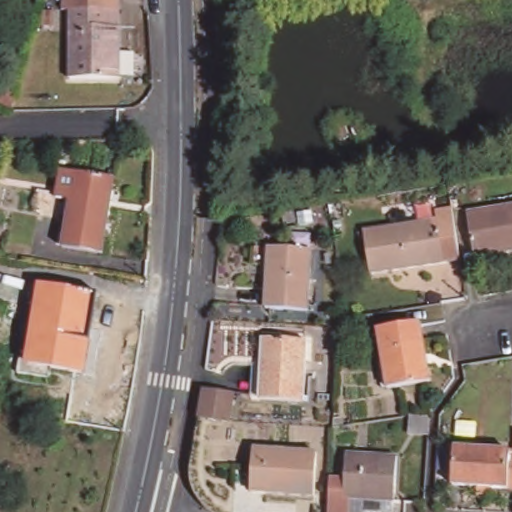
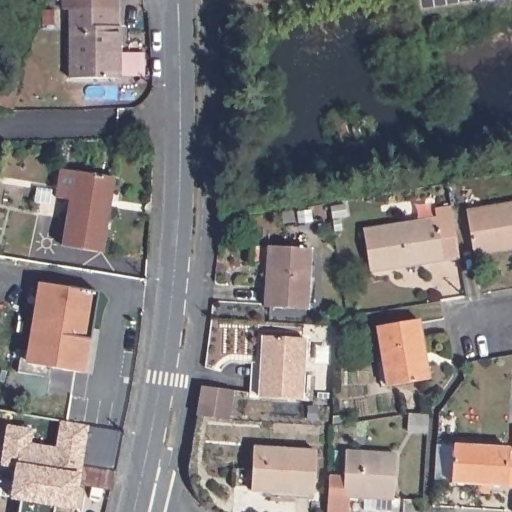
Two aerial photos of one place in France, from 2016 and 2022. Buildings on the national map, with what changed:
unchanged [(66,10),(66,0),(122,0),(124,80),(75,80),(74,10),(66,10)]
unchanged [(56,202),(59,171),(113,176),(106,255),(66,250),(70,203),(56,202)]
unchanged [(512,202),(512,249),(476,255),(470,210),(512,202)]
unchanged [(430,219),(428,209),(447,206),(455,257),(380,271),(373,229),(430,219)]
unchanged [(317,253),(312,312),(267,310),(271,251),(317,253)]
unchanged [(34,357),(45,281),(95,288),(81,380),(54,375),(31,371),(34,357)]
unchanged [(420,322),(430,378),(387,387),(376,330),(420,322)]
unchanged [(307,338),(303,395),(258,393),(262,337),(307,338)]
unchanged [(232,391),(230,422),(199,421),(204,390),(232,391)]
new [(55,447),(59,421),(122,431),(115,471),(82,466),(81,473),(75,511),(53,507),(53,512),(20,512),(21,502),(9,501),(13,470),(0,467),(0,457),(5,424),(32,430),(30,444),(55,447)]
unchanged [(402,423),(401,436),(381,436),(382,422),(402,423)]
unchanged [(512,447),(512,486),(456,483),(458,445),(512,447)]
unchanged [(320,450),(317,493),(254,491),(256,447),(320,450)]
unchanged [(350,447),(395,447),(390,507),(362,506),(363,494),(355,493),(354,512),(332,512),(335,467),(348,467),(350,447)]

